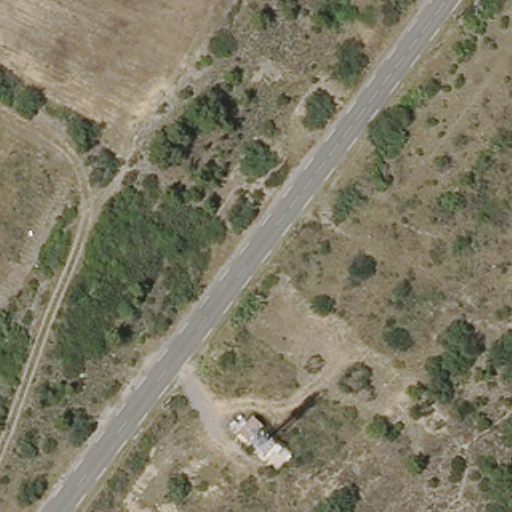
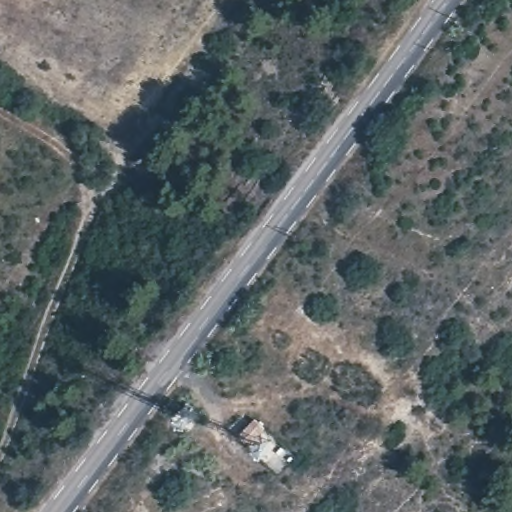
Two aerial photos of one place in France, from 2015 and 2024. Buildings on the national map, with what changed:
unchanged [(259,414),(270,429),(254,441),(242,427),(259,414)]

